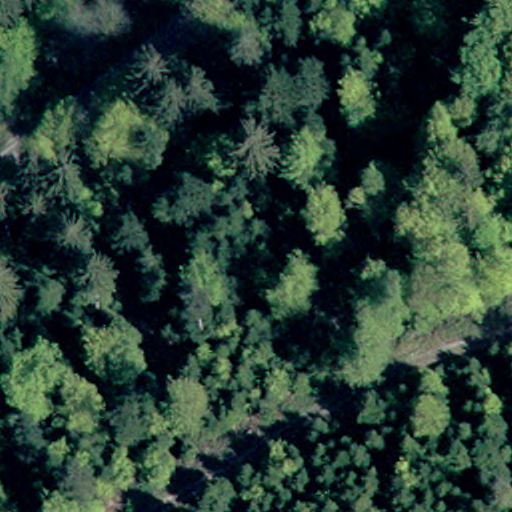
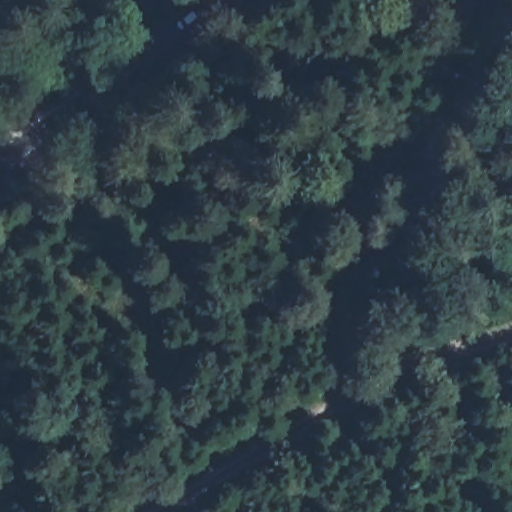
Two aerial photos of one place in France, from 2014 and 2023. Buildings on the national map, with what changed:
unchanged [(3,216),(17,206),(27,220),(15,230),(3,216)]

